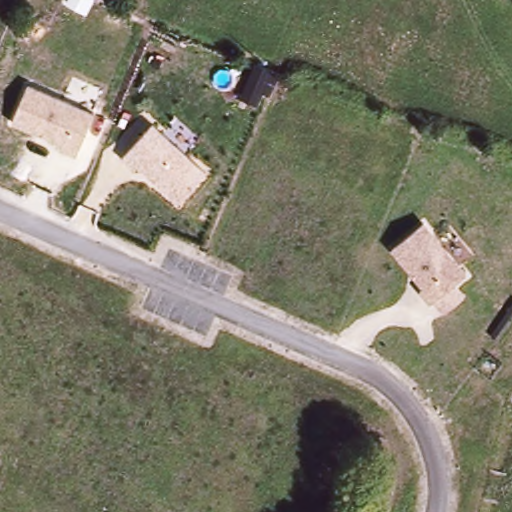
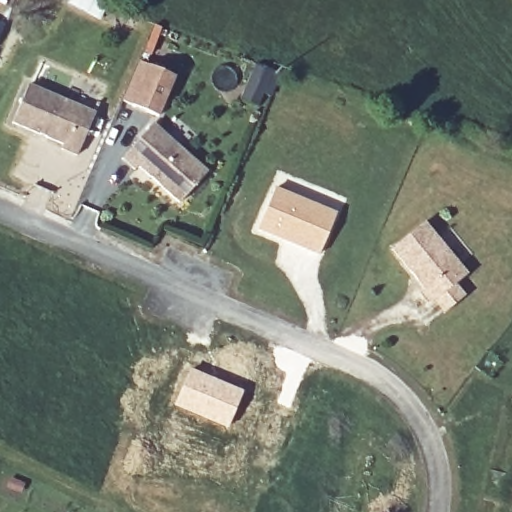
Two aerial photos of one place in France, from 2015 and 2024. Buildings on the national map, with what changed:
unchanged [(175,74),(160,116),(122,101),(138,60),(175,74)]
unchanged [(95,111),(79,154),(64,149),(65,144),(15,123),(30,83),(95,111)]
unchanged [(207,169),(181,201),(140,165),(136,170),(124,158),(155,124),(207,169)]
new [(278,189),(340,215),(323,254),(261,228),(278,189)]
unchanged [(426,222),(469,272),(458,283),(466,295),(446,312),(436,301),(433,304),(421,291),(425,288),(394,249),(426,222)]
new [(190,365),(245,388),(229,429),(172,403),(190,365)]

